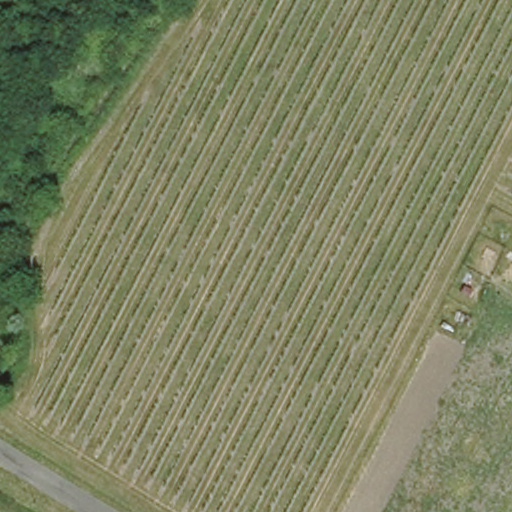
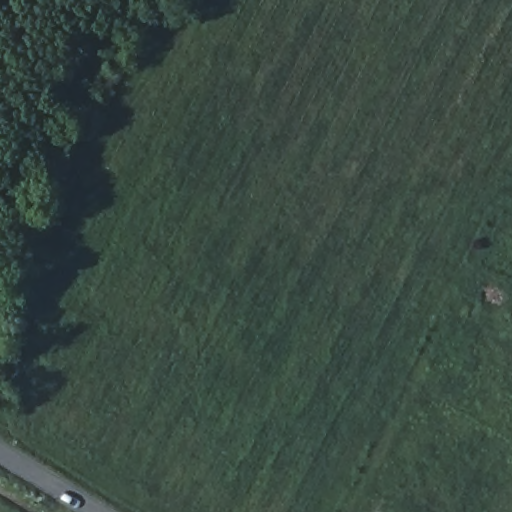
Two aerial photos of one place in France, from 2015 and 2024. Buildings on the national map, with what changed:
[]

